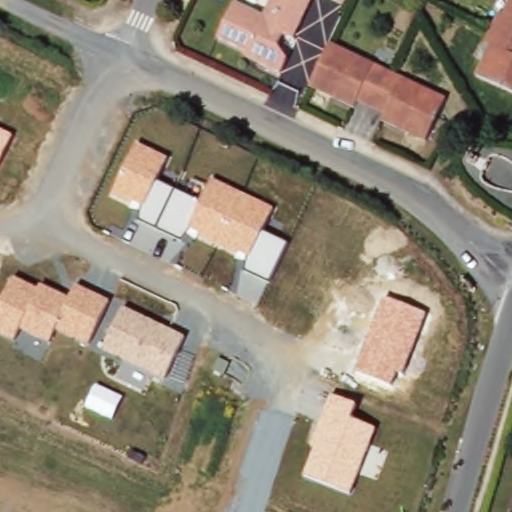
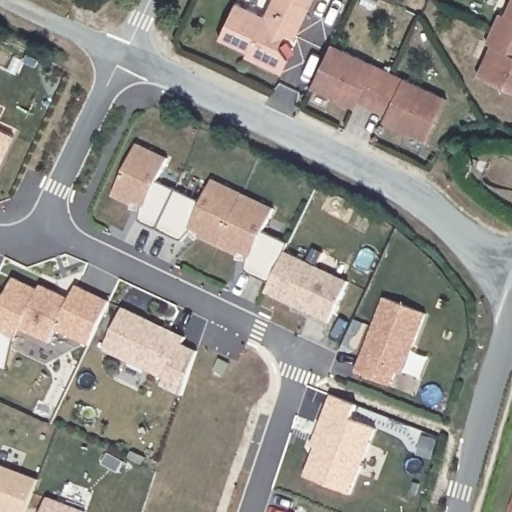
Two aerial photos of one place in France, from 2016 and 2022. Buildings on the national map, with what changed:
unchanged [(300,39),(286,33),(282,46),(289,57),(284,70),(257,56),(258,55),(227,39),(243,0),(247,0),(268,9),(272,0),(318,0),(300,39)]
unchanged [(481,83),(497,53),(486,47),(502,12),(512,17),(512,98),(481,83)]
unchanged [(448,97),(426,144),(378,120),(382,113),(355,99),(351,108),(303,84),(327,38),(448,97)]
unchanged [(0,164),(0,130),(13,136),(0,164)]
unchanged [(137,145),(168,159),(157,182),(201,203),(211,181),(273,209),(263,232),(289,244),(270,285),(244,273),(251,259),(190,231),(185,242),(137,221),(143,210),(112,196),(137,145)]
new [(286,251),(347,281),(331,322),(266,292),(270,285),(286,251)]
unchanged [(39,292),(42,286),(69,298),(74,286),(109,301),(90,345),(57,329),(51,344),(21,329),(16,341),(0,334),(0,310),(14,280),(39,292)]
unchanged [(386,299),(427,313),(404,374),(397,372),(392,385),(357,371),(386,299)]
unchanged [(105,349),(124,308),(185,338),(167,378),(105,349)]
new [(184,395),(162,387),(167,378),(182,344),(198,351),(184,395)]
unchanged [(305,477),(317,448),(312,446),(331,396),(357,404),(352,419),(377,429),(351,495),(305,477)]
new [(26,512),(0,512),(0,465),(39,480),(26,512)]
new [(87,512),(42,512),(49,497),(87,512)]
unchanged [(511,510),(512,507),(512,510),(511,510)]

